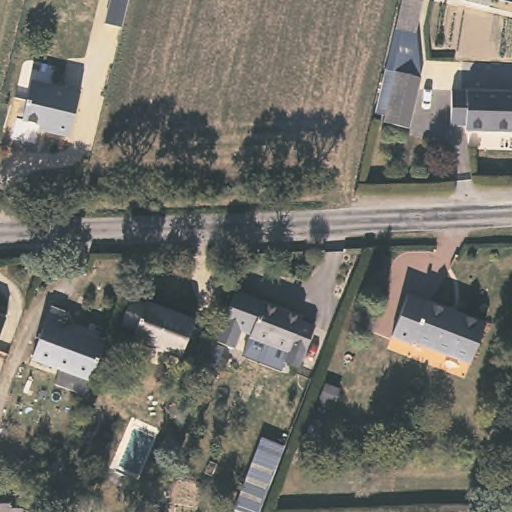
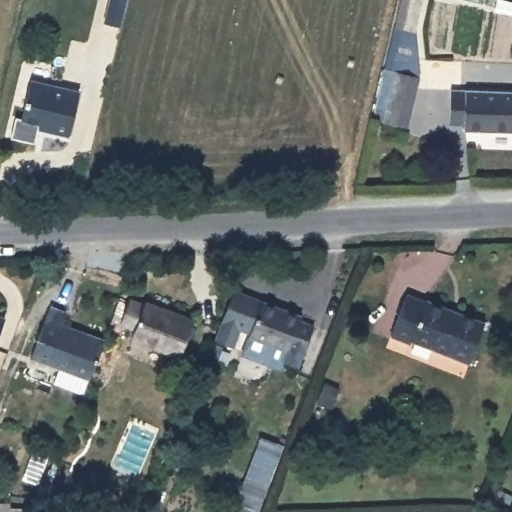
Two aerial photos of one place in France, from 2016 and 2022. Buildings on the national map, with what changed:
unchanged [(104,27),(111,0),(129,0),(121,32),(104,27)]
unchanged [(416,76),(394,70),(390,69),(401,26),(394,24),(401,0),(420,0),(412,28),(416,76)]
unchanged [(416,76),(404,127),(380,120),(394,70),(416,76)]
unchanged [(84,87),(73,130),(55,126),(56,121),(26,113),(35,75),(84,87)]
unchanged [(512,131),(471,129),(470,126),(453,124),(455,85),(512,88),(512,131)]
unchanged [(432,301),(434,299),(488,322),(475,360),(418,337),(417,340),(395,332),(411,292),(432,301)]
unchanged [(322,325),(337,331),(326,358),(313,353),(310,358),(269,342),(271,337),(266,335),(260,352),(241,344),(245,333),(250,320),(253,311),(259,296),(284,306),(324,321),(322,325)]
unchanged [(201,322),(187,359),(139,340),(143,330),(129,324),(138,301),(152,307),(154,303),(201,322)]
unchanged [(68,311),(64,321),(104,337),(82,397),(50,384),(57,367),(34,357),(54,305),(68,311)]
unchanged [(3,312),(0,321),(0,310),(3,312)]
unchanged [(15,496),(16,512),(0,512),(0,496),(15,496)]

